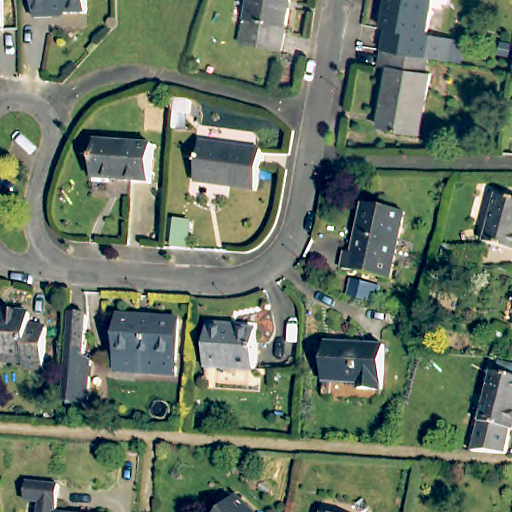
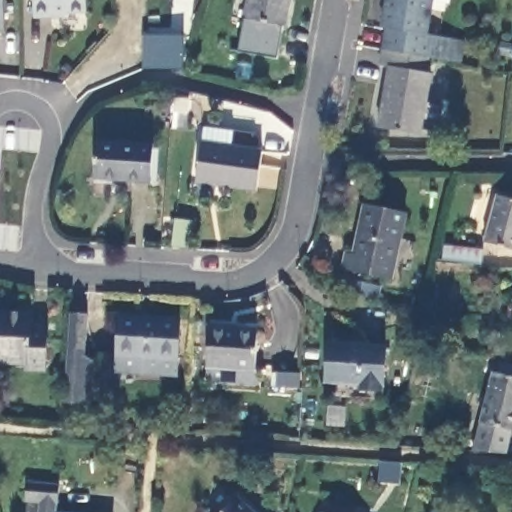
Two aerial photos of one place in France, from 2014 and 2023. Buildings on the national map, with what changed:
unchanged [(11,41),(0,41),(0,0),(9,0),(11,41)]
unchanged [(97,18),(62,20),(62,22),(44,23),(43,0),(97,0),(97,18)]
unchanged [(291,62),(249,54),(258,0),(302,0),(291,62)]
unchanged [(462,65),(454,64),(436,61),(428,59),(384,51),(387,30),(382,29),(387,0),(433,0),(427,35),(432,36),(432,37),(458,42),(465,42),(462,65)]
new [(144,36),(183,35),(183,70),(145,69),(144,36)]
unchanged [(428,59),(426,75),(430,75),(420,137),(379,129),(389,69),(381,67),(384,51),(428,59)]
unchanged [(257,146),(252,187),(191,179),(196,139),(257,146)]
unchanged [(98,185),(101,148),(159,152),(156,189),(137,187),(98,185)]
unchanged [(512,244),(495,239),(508,192),(512,193),(512,244)]
unchanged [(369,265),(379,215),(420,225),(407,292),(358,281),(361,264),(369,265)]
unchanged [(173,217),(189,218),(187,245),(184,245),(171,244),(173,217)]
unchanged [(494,246),(492,259),(454,256),(455,242),(494,246)]
unchanged [(30,315),(29,328),(47,330),(45,371),(27,370),(27,366),(0,364),(0,313),(30,315)]
unchanged [(85,350),(93,357),(90,401),(64,398),(69,316),(88,317),(85,350)]
unchanged [(130,327),(190,332),(187,372),(127,368),(130,327)]
unchanged [(232,337),(231,341),(263,342),(261,380),(212,377),(214,337),(232,337)]
unchanged [(376,357),(396,358),(393,402),(371,401),(371,396),(337,393),(339,355),(376,357)]
unchanged [(186,388),(126,385),(127,368),(187,372),(186,388)]
unchanged [(512,455),(483,453),(503,373),(512,376),(512,455)]
unchanged [(3,467),(0,468),(0,458),(3,467)]
unchanged [(26,499),(27,481),(57,483),(55,512),(63,512),(39,512),(41,502),(26,499)]
unchanged [(256,512),(229,512),(240,498),(256,512)]
unchanged [(341,512),(322,512),(324,508),(341,512)]

